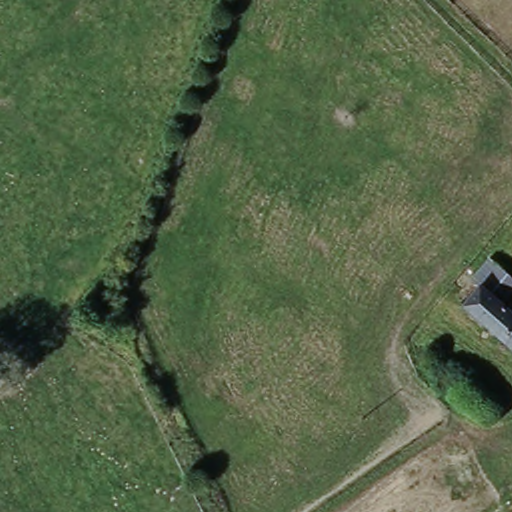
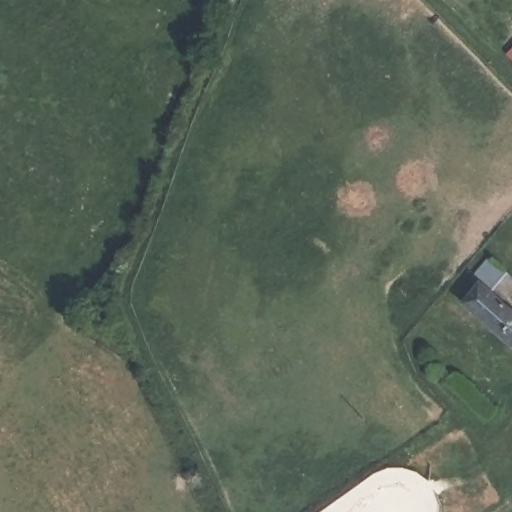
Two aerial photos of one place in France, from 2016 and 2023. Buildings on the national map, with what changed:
unchanged [(491,260),(512,281),(512,291),(497,304),(512,319),(512,358),(462,309),(481,290),(471,280),(491,260)]

